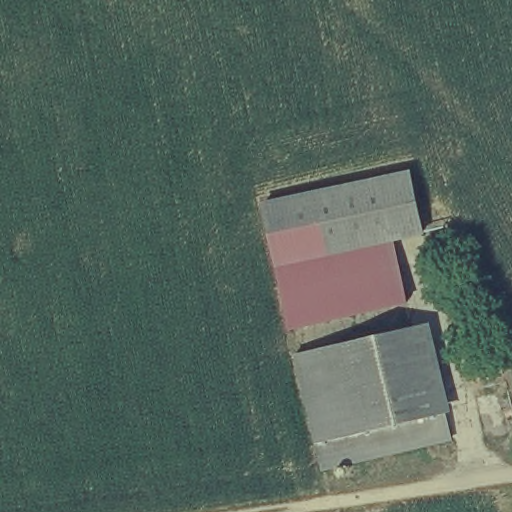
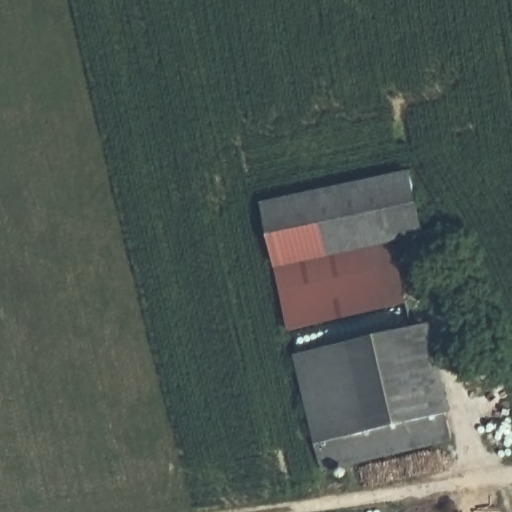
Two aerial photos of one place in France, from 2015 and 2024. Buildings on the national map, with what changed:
unchanged [(405,297),(287,325),(258,202),(407,167),(421,227),(391,235),(405,297)]
unchanged [(438,407),(447,405),(455,433),(325,465),(298,352),(418,323),(438,407)]

